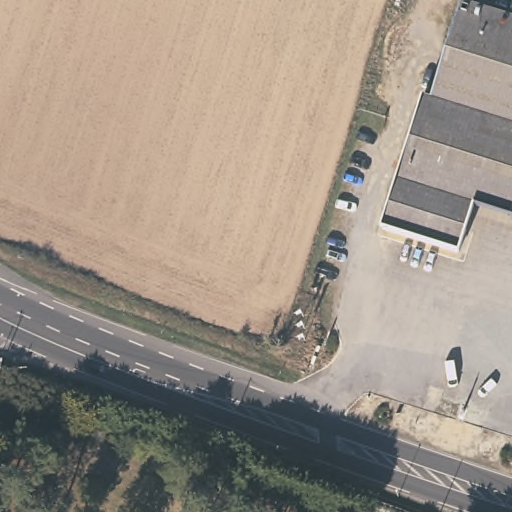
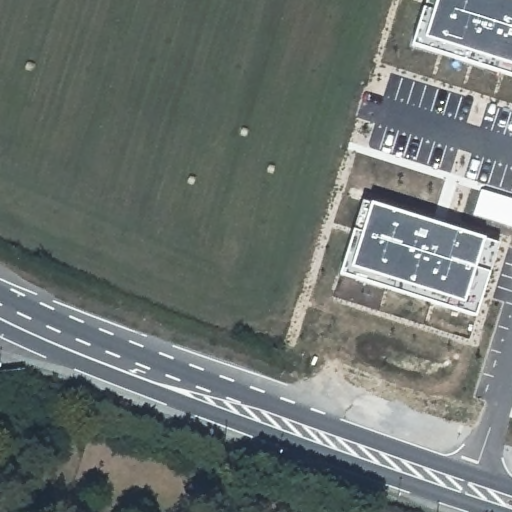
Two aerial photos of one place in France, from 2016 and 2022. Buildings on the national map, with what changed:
demolished [(455,251),(378,227),(422,96),(428,97),(459,0),(461,0),(512,17),(512,217),(471,204),(455,251)]
demolished [(478,312),(505,320),(502,330),(501,334),(474,327),(475,322),(478,312)]

